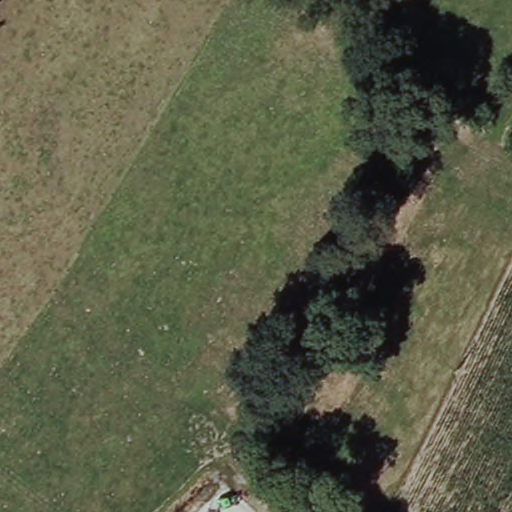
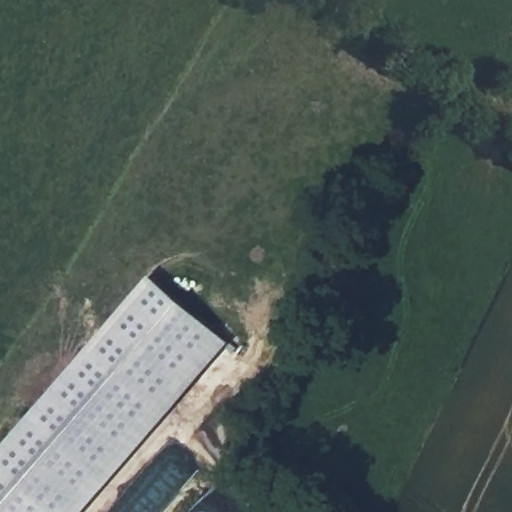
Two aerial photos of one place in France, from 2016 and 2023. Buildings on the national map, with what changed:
new [(232,336),(81,512),(0,512),(0,450),(155,269),(232,336)]

